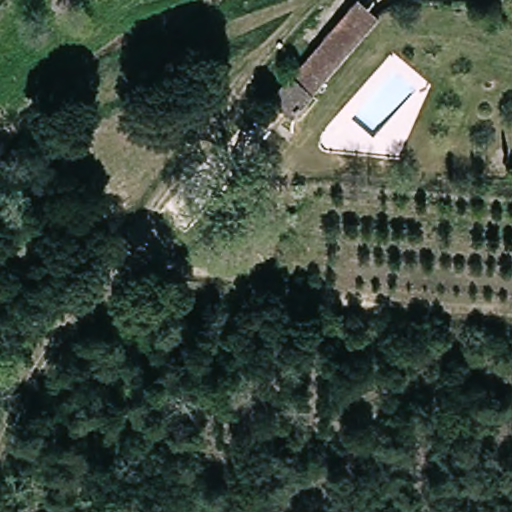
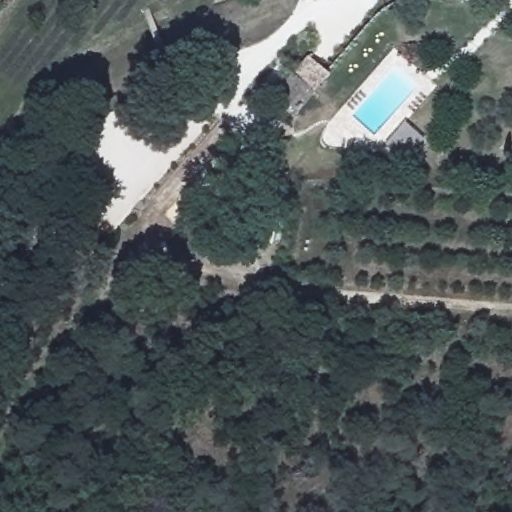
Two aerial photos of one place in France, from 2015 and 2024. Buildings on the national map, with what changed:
unchanged [(274,96),(356,0),(362,0),(383,16),(298,117),(274,96)]

